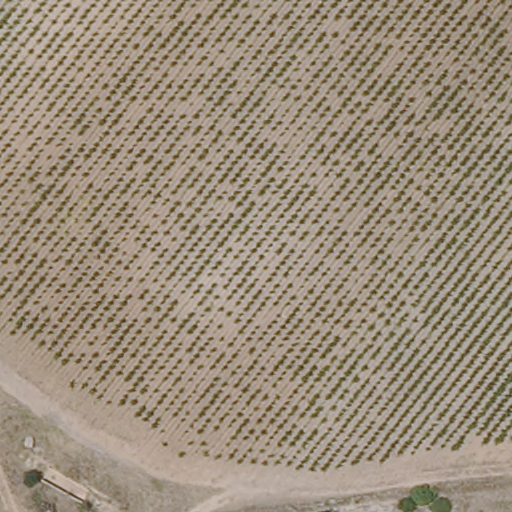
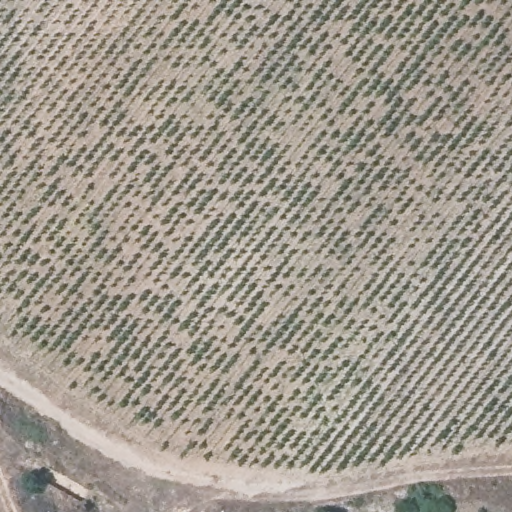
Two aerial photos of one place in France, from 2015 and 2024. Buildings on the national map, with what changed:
[]

